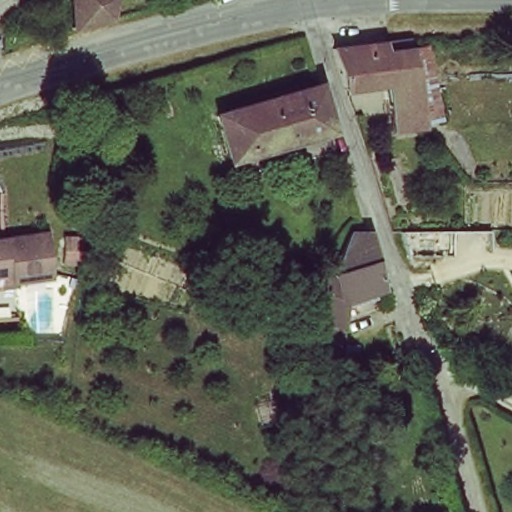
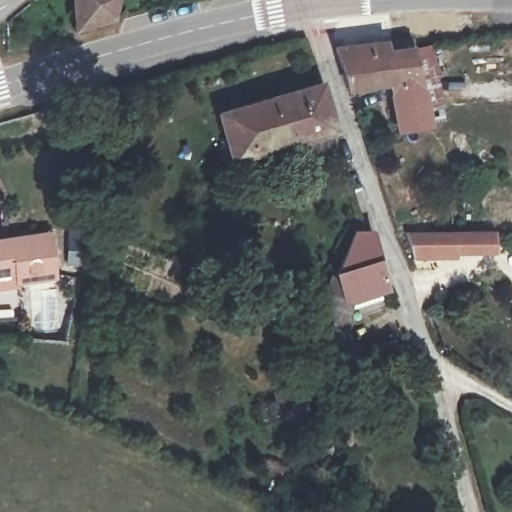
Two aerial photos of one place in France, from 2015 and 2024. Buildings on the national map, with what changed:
unchanged [(109,10),(80,19),(76,0),(109,0),(109,10)]
unchanged [(388,51),(417,48),(435,45),(442,80),(425,82),(433,130),(404,135),(395,86),(351,91),(337,46),(386,40),(388,51)]
unchanged [(318,79),(335,128),(232,161),(216,110),(318,79)]
unchanged [(51,272),(15,275),(0,276),(0,234),(47,231),(51,272)]
unchanged [(362,361),(347,363),(300,363),(323,295),(328,295),(348,237),(367,231),(383,290),(345,301),(346,345),(361,345),(362,361)]
new [(457,255),(458,260),(414,260),(405,232),(496,231),(496,255),(457,255)]

